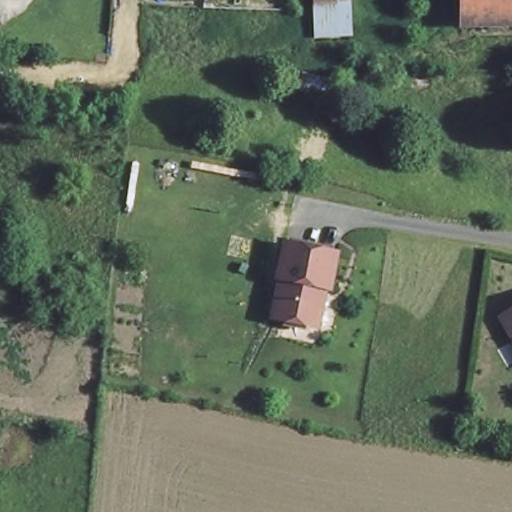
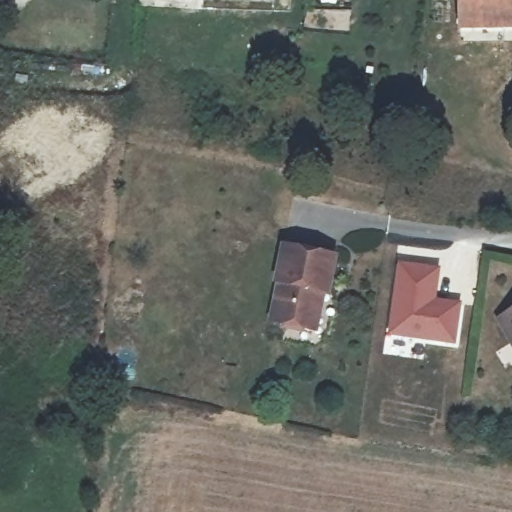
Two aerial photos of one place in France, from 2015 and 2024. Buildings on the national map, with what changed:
unchanged [(190,4),(173,0),(190,0),(190,4)]
unchanged [(460,20),(462,0),(511,0),(509,26),(460,20)]
unchanged [(327,297),(322,296),(314,332),(274,325),(280,292),(273,290),(281,248),(335,258),(327,297)]
new [(390,333),(399,264),(436,271),(431,300),(457,305),(452,341),(390,333)]
unchanged [(512,311),(512,329),(505,314),(512,311)]

